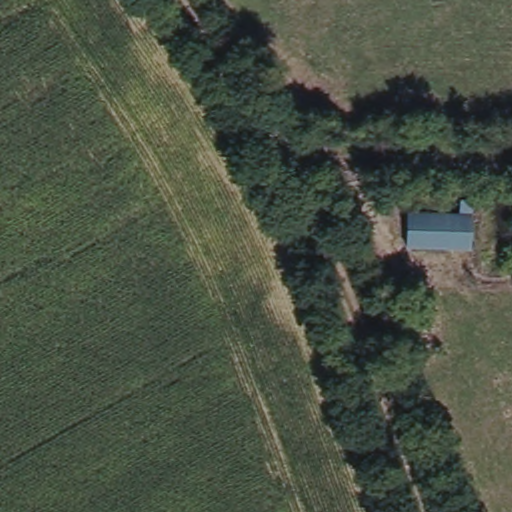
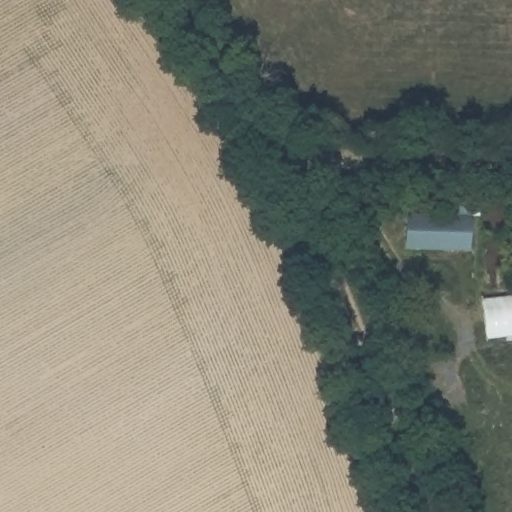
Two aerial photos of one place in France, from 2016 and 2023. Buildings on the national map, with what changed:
unchanged [(469,213),(468,248),(405,246),(405,211),(469,213)]
new [(512,300),(512,335),(486,338),(484,322),(482,303),(512,300)]

